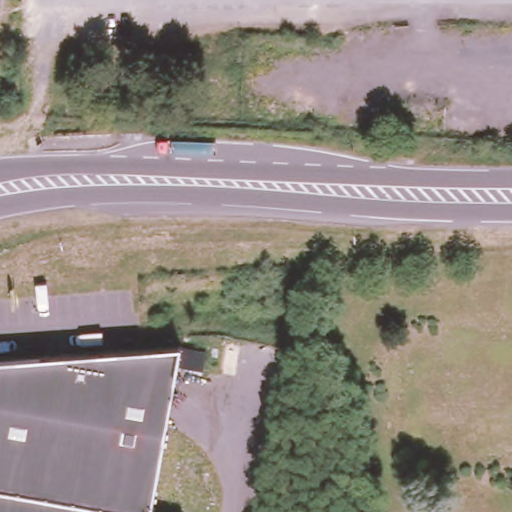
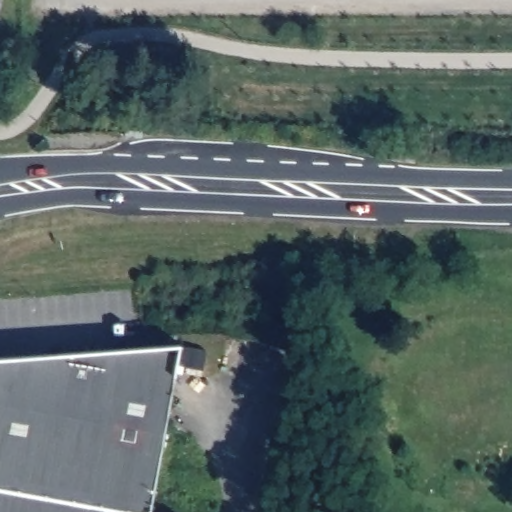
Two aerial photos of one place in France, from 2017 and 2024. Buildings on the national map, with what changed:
unchanged [(150,512),(0,512),(0,359),(182,345),(150,512)]

